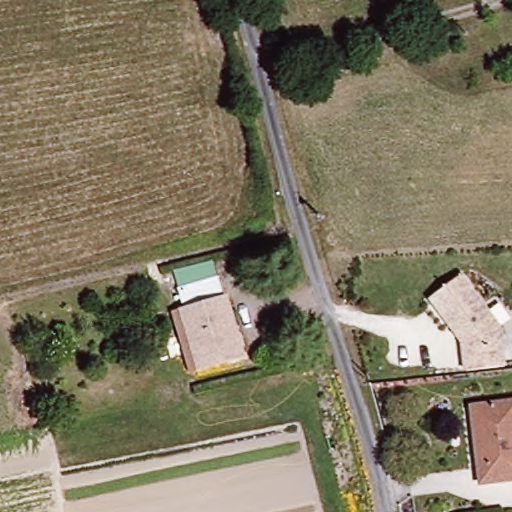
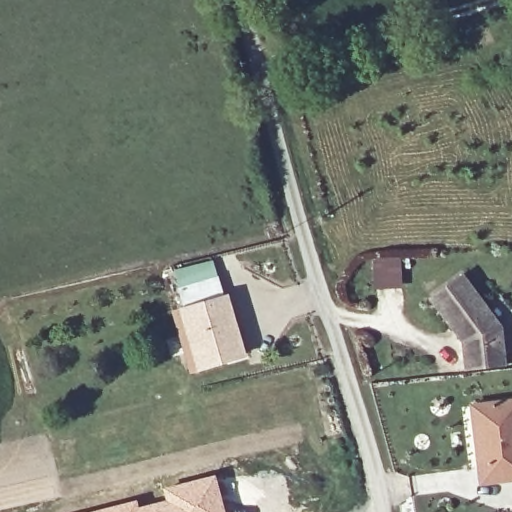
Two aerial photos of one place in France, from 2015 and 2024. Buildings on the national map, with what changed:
new [(401,258),(404,288),(374,291),(371,262),(401,258)]
unchanged [(458,272),(499,322),(505,361),(505,362),(466,367),(462,339),(428,296),(458,272)]
unchanged [(231,360),(201,368),(189,372),(172,312),(185,308),(190,307),(183,283),(217,274),(223,298),(234,296),(242,329),(249,355),(231,360)]
unchanged [(512,485),(480,490),(468,411),(512,404),(512,485)]
new [(137,498),(139,507),(165,499),(162,487),(215,474),(225,512),(87,512),(137,498)]

